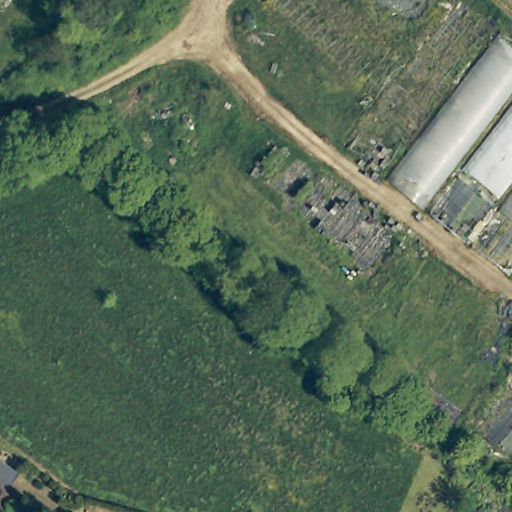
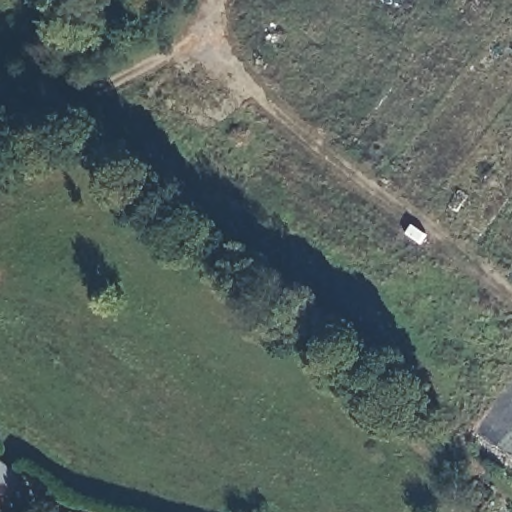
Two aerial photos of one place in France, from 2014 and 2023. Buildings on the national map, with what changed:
demolished [(511,274),(385,178),(493,30),(512,42),(512,273),(511,274)]
unchanged [(16,485),(5,487),(0,483),(0,464),(3,459),(22,476),(16,485)]
unchanged [(75,511),(76,512),(74,512),(75,511)]

